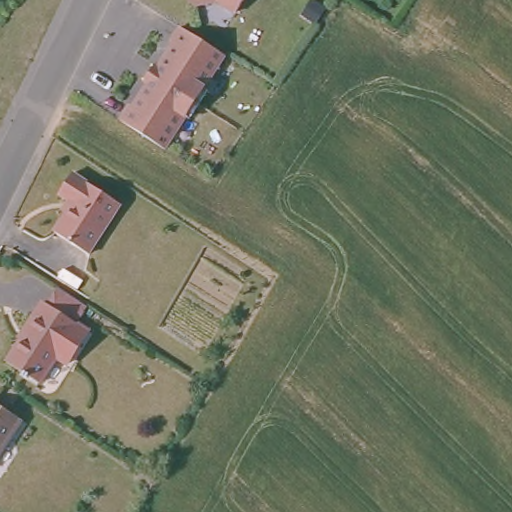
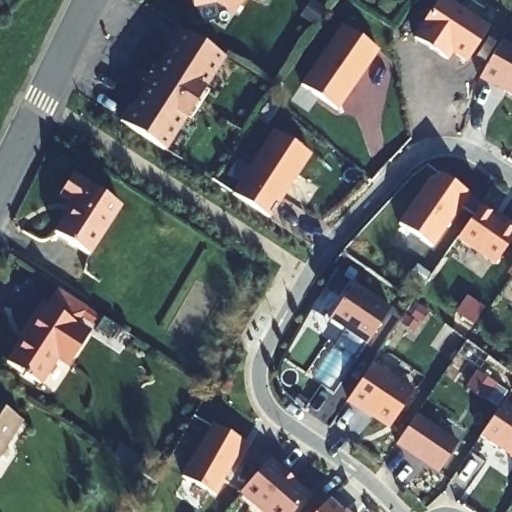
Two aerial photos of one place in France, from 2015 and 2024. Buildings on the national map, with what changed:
unchanged [(198,0),(212,0),(199,4),(198,0)]
unchanged [(226,0),(247,0),(242,9),(226,0)]
new [(415,36),(438,0),(450,0),(489,28),(467,63),(453,54),(449,59),(415,36)]
unchanged [(167,149),(120,119),(130,103),(132,104),(147,80),(143,77),(152,61),(157,64),(172,39),(169,38),(178,23),(226,53),(167,149)]
new [(339,113),(304,87),(345,28),(381,53),(339,113)]
new [(512,93),(484,78),(502,46),(512,52),(512,93)]
new [(311,157),(272,219),(239,198),(275,134),(311,157)]
unchanged [(73,204),(57,194),(70,173),(119,204),(89,253),(56,232),(73,204)]
new [(402,227),(433,182),(443,177),(471,196),(434,250),(402,227)]
new [(512,251),(505,264),(462,241),(480,209),(512,226),(512,251)]
new [(512,271),(512,274),(510,274),(512,271)]
unchanged [(14,343),(10,340),(34,304),(42,309),(55,288),(64,293),(90,310),(55,367),(45,361),(34,379),(2,361),(14,343)]
new [(389,312),(369,345),(335,324),(354,289),(389,312)]
new [(413,389),(389,429),(345,403),(369,366),(413,389)]
new [(512,458),(479,436),(503,401),(512,407),(512,458)]
unchanged [(22,421),(0,456),(0,407),(22,421)]
new [(414,414),(459,444),(438,474),(394,446),(414,414)]
new [(245,442),(216,496),(180,477),(212,422),(245,442)]
new [(305,489),(292,512),(270,512),(245,499),(262,467),(305,489)]
new [(331,500),(343,512),(319,512),(331,500)]

